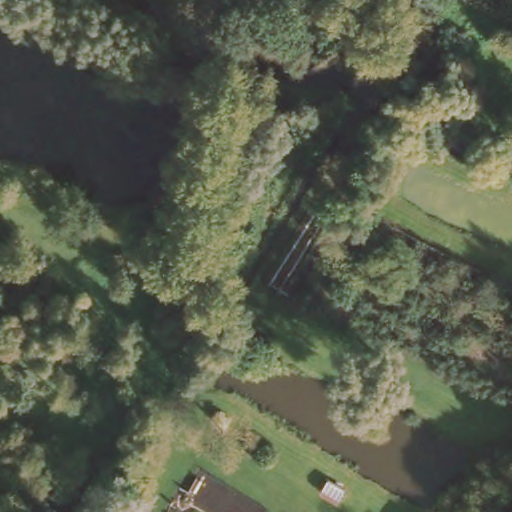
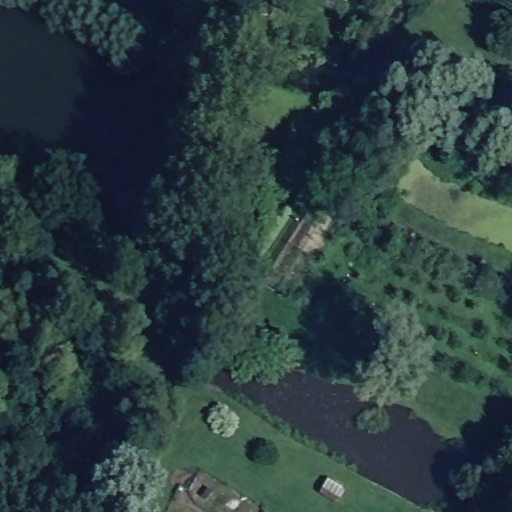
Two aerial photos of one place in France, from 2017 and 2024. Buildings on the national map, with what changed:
unchanged [(340,505),(324,495),(330,485),(346,494),(340,505)]

